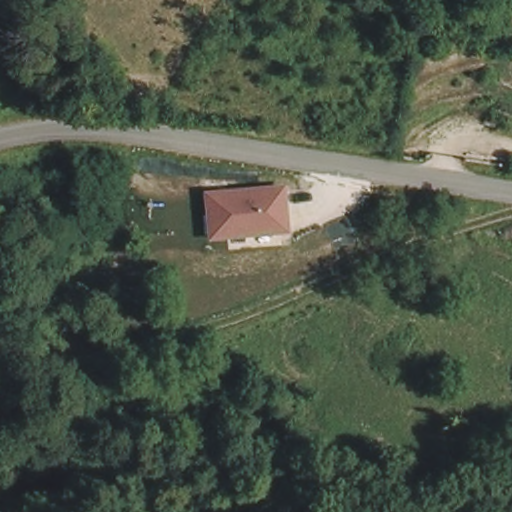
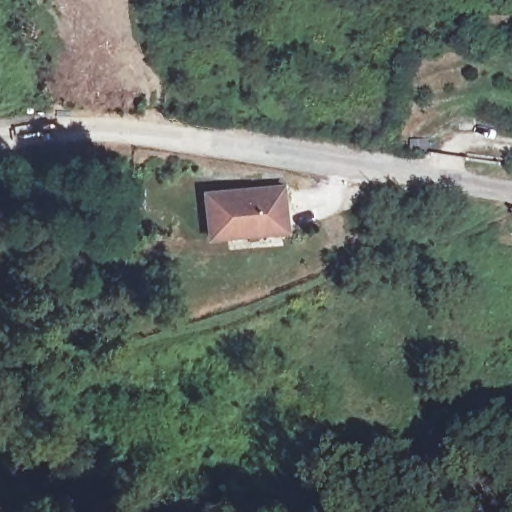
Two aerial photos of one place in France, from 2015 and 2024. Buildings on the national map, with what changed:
unchanged [(207,237),(202,188),(285,181),(289,232),(207,237)]

